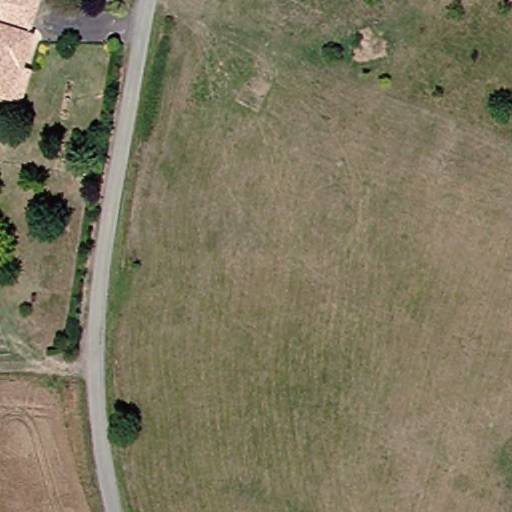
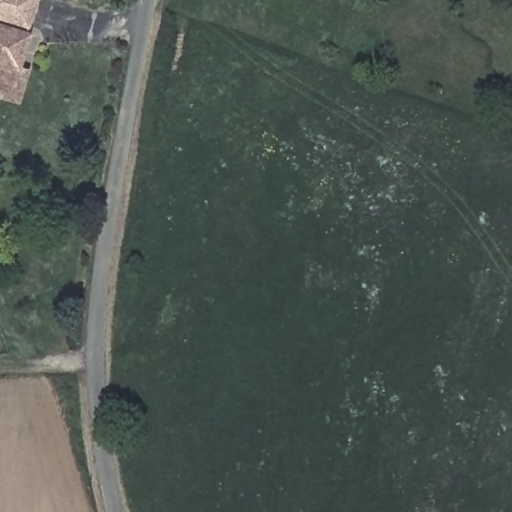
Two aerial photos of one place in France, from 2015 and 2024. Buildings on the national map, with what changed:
unchanged [(0,10),(0,0),(45,0),(38,21),(0,10)]
unchanged [(15,97),(0,93),(0,27),(2,20),(47,35),(31,69),(40,73),(30,104),(15,97)]

